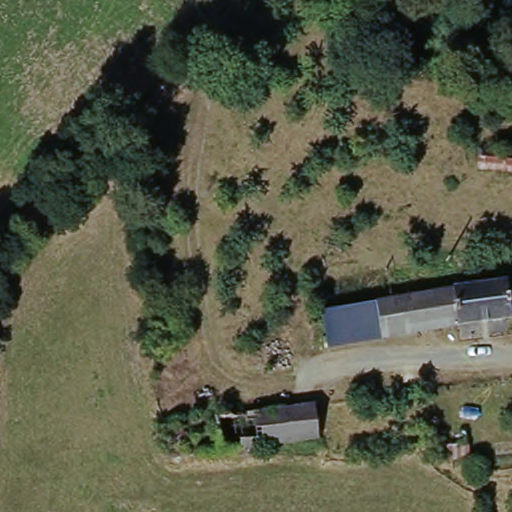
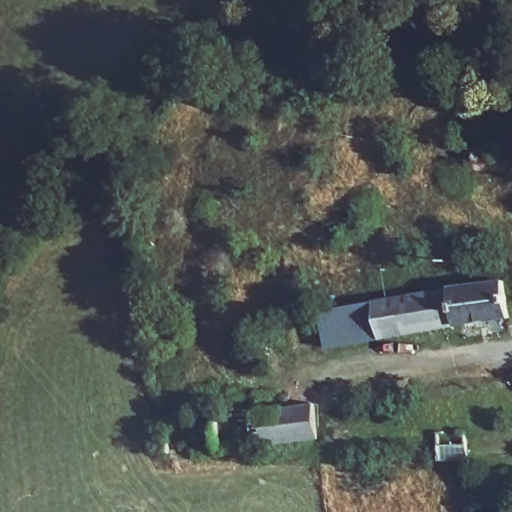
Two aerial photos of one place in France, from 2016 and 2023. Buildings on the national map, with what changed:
unchanged [(512,151),(512,172),(478,169),(481,148),(512,151)]
unchanged [(512,319),(386,340),(380,302),(512,281),(512,319)]
unchanged [(380,302),(386,340),(331,349),(325,311),(380,302)]
unchanged [(321,404),(326,439),(290,445),(285,409),(321,404)]
unchanged [(285,409),(290,445),(227,453),(222,418),(285,409)]
unchanged [(471,431),(473,460),(445,461),(443,432),(471,431)]

